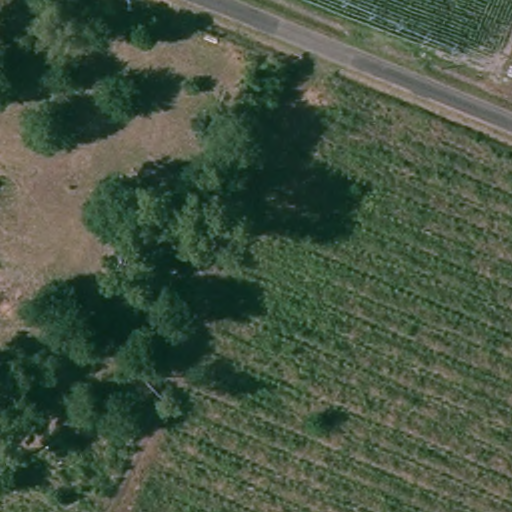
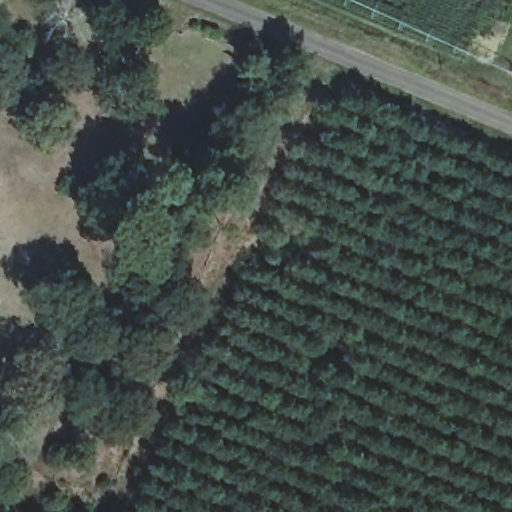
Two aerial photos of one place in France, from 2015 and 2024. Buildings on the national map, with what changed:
[]

